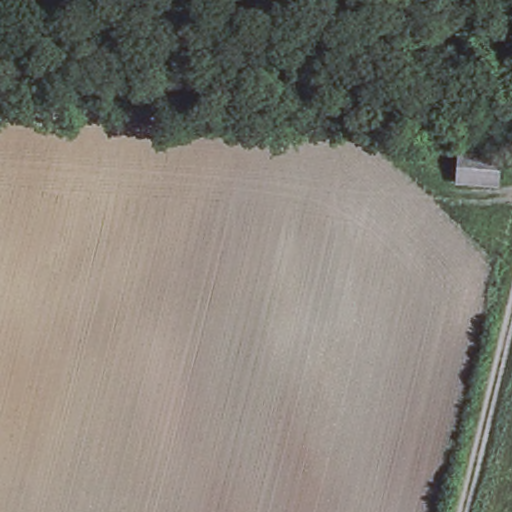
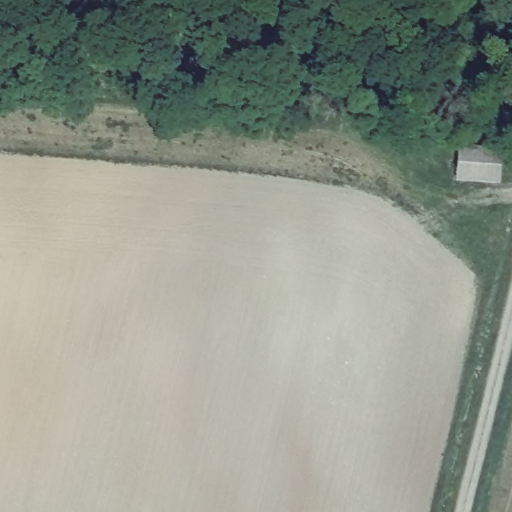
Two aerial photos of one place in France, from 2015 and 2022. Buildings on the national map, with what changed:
unchanged [(497,185),(485,182),(456,175),(463,145),(493,153),(504,155),(497,185)]

